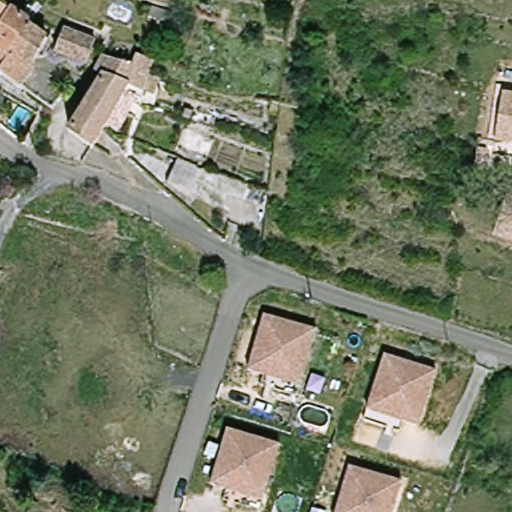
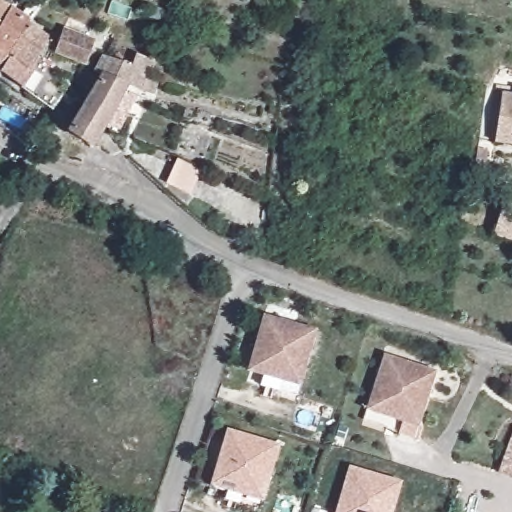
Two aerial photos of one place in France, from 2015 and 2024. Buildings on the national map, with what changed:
unchanged [(0,1),(0,0),(1,0),(0,1)]
unchanged [(18,11),(0,43),(0,1),(18,11)]
unchanged [(192,29),(169,18),(175,6),(198,16),(192,29)]
unchanged [(8,83),(0,78),(0,43),(18,11),(30,20),(40,25),(38,28),(13,74),(8,83)]
unchanged [(42,66),(45,70),(35,88),(13,74),(38,28),(57,40),(42,66)]
unchanged [(62,32),(96,43),(90,64),(55,51),(62,32)]
unchanged [(150,56),(165,61),(160,76),(154,88),(138,80),(97,137),(86,131),(73,122),(77,117),(98,88),(111,70),(105,67),(111,57),(113,54),(143,68),(150,56)]
unchanged [(42,93),(51,78),(65,88),(56,104),(42,93)]
unchanged [(505,95),(512,97),(512,147),(497,145),(505,95)]
unchanged [(205,190),(199,187),(195,186),(180,178),(190,154),(214,164),(205,190)]
unchanged [(512,239),(492,233),(505,195),(512,197),(512,239)]
unchanged [(266,378),(250,373),(268,318),(320,334),(303,384),(301,390),(266,378)]
unchanged [(371,410),(390,361),(440,379),(419,435),(403,429),(368,417),(371,410)]
new [(512,479),(500,475),(512,435),(512,479)]
unchanged [(230,496),(213,491),(232,436),(283,452),(266,501),(265,508),(230,496)]
unchanged [(400,490),(392,512),(335,512),(349,473),(400,490)]

